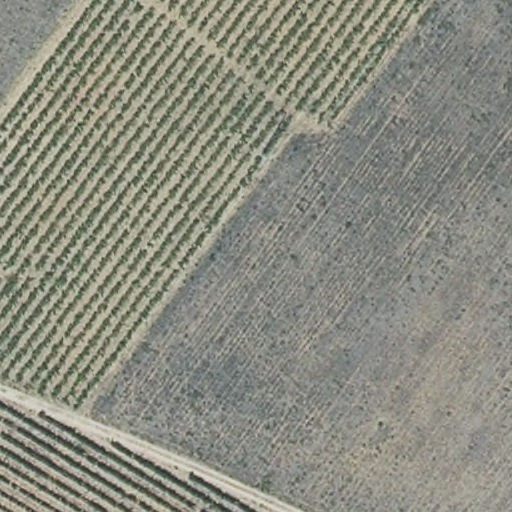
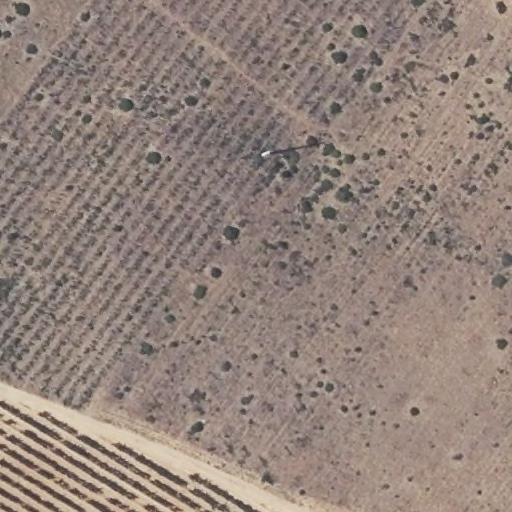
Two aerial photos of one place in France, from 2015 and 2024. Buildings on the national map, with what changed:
[]

